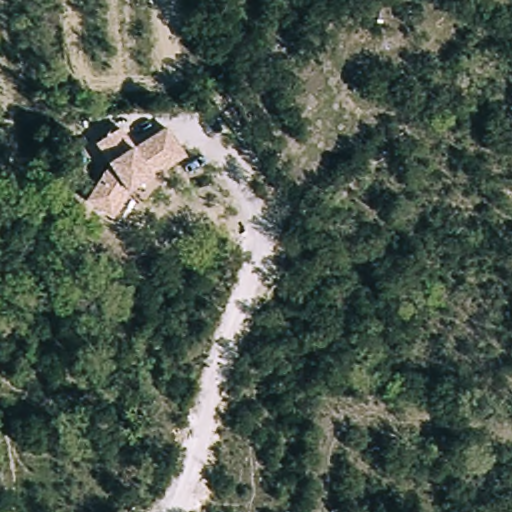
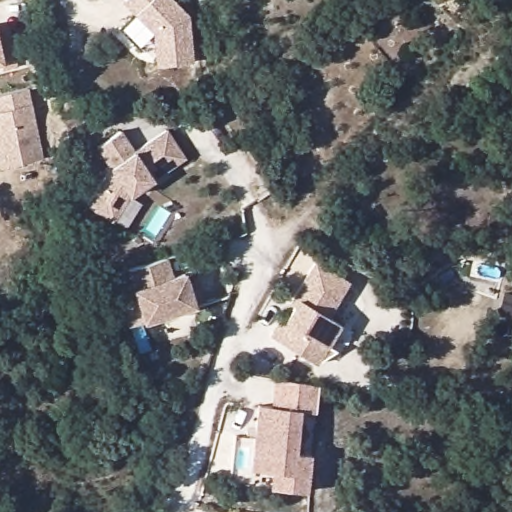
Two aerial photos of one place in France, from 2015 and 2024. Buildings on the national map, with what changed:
new [(169,0),(192,20),(198,66),(162,71),(157,38),(125,11),(135,0),(169,0)]
new [(16,68),(0,71),(0,69),(0,35),(8,33),(16,68)]
new [(47,160),(3,169),(0,155),(0,95),(31,89),(47,160)]
unchanged [(153,173),(157,179),(131,195),(127,191),(115,221),(88,205),(107,166),(98,145),(123,130),(137,148),(167,128),(187,158),(153,173)]
new [(302,353),(273,337),(283,317),(287,319),(298,299),(295,297),(314,260),(347,277),(328,313),(342,320),(330,344),(320,362),(302,353)]
new [(134,275),(172,263),(178,282),(190,279),(200,311),(149,325),(127,332),(118,300),(140,294),(134,275)]
new [(316,388),(313,412),(272,406),(275,380),(316,388)]
new [(291,490),(293,474),(252,469),(259,405),(300,410),(295,454),(312,456),(308,492),(291,490)]

